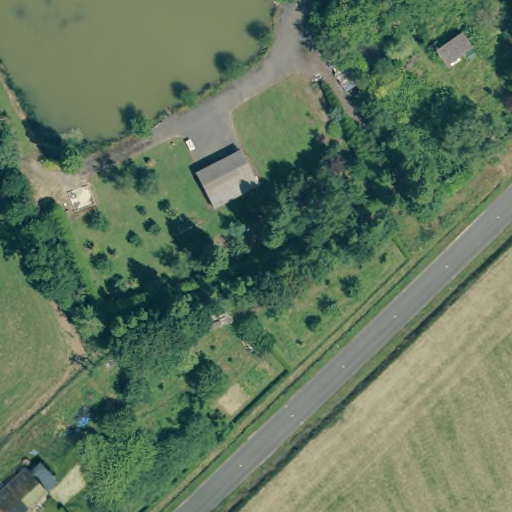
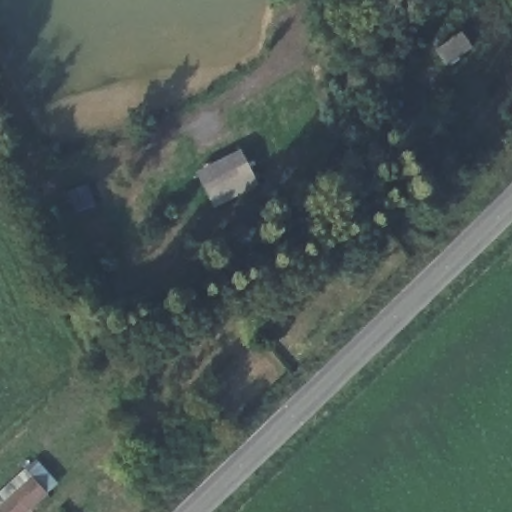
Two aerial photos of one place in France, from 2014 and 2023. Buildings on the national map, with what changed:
unchanged [(378,18),(387,25),(377,41),(367,35),(378,18)]
unchanged [(462,38),(471,53),(447,71),(437,55),(462,38)]
unchanged [(217,208),(198,171),(244,147),(262,184),(217,208)]
unchanged [(45,497),(27,512),(1,512),(0,511),(0,503),(30,479),(45,497)]

